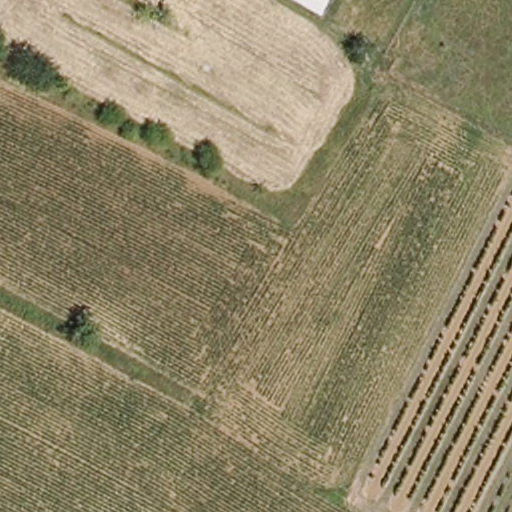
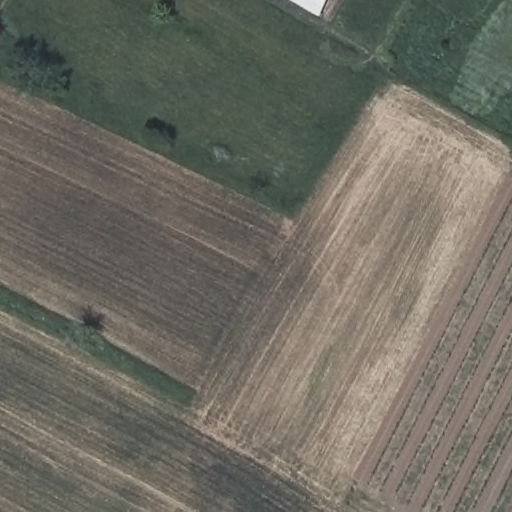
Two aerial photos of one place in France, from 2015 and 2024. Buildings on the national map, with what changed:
unchanged [(314,15),(289,0),(323,0),(314,15)]

